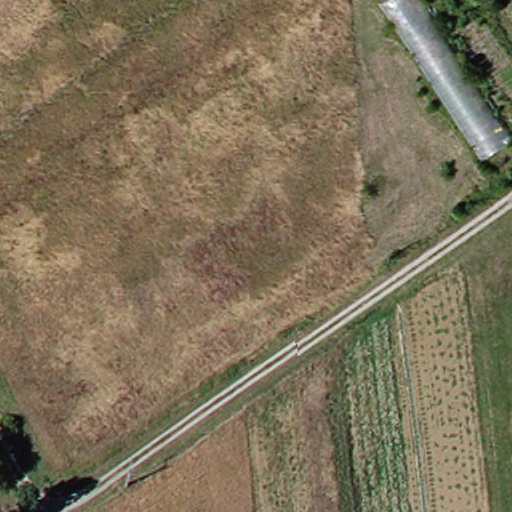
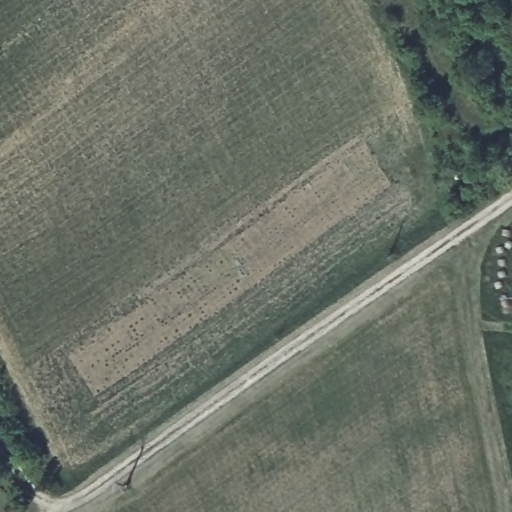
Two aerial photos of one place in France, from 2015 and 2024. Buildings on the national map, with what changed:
demolished [(512,140),(487,156),(388,0),(430,0),(512,128),(512,140)]

